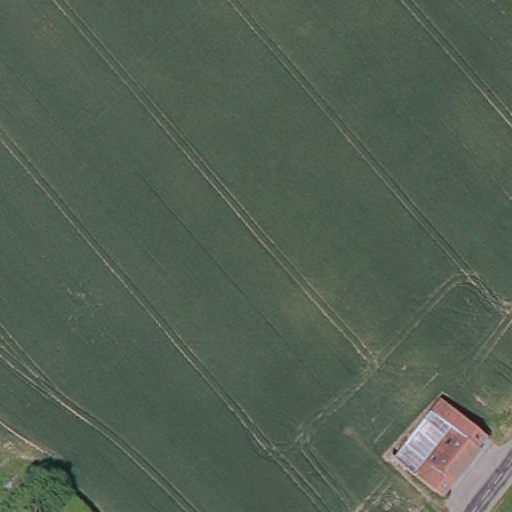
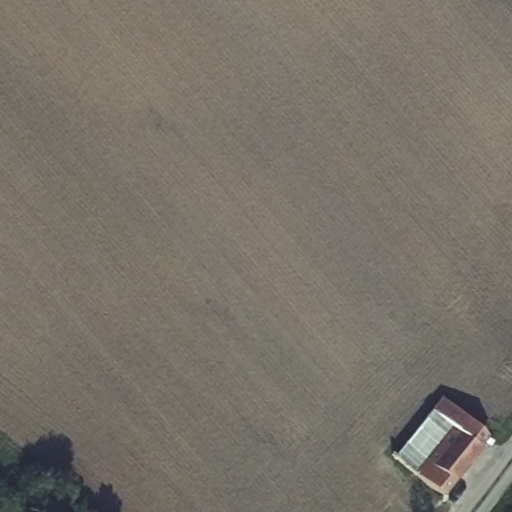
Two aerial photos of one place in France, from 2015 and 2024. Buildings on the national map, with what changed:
unchanged [(401,462),(447,402),(486,434),(478,444),(482,447),(444,495),(401,462)]

